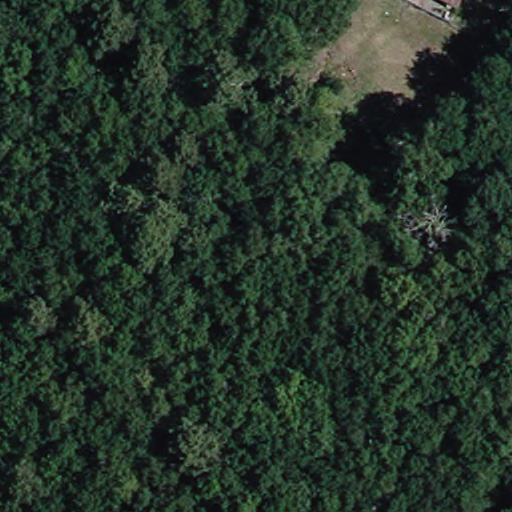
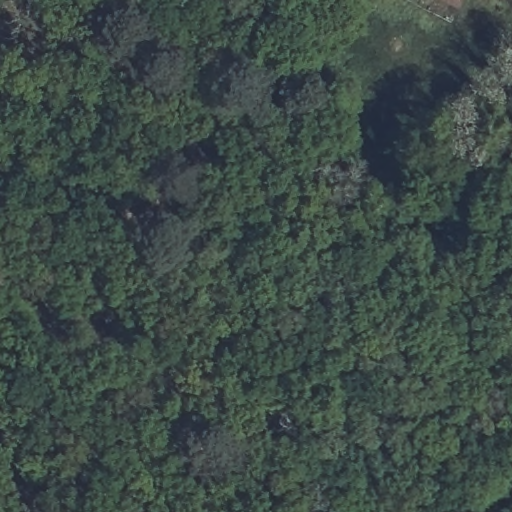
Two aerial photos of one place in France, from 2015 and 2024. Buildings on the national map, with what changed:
unchanged [(460,7),(444,0),(464,0),(460,7)]

